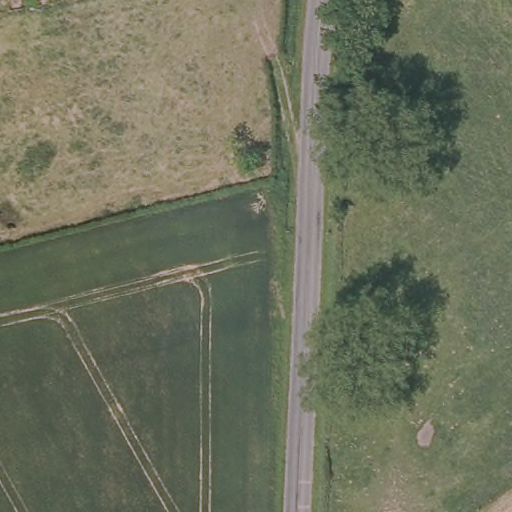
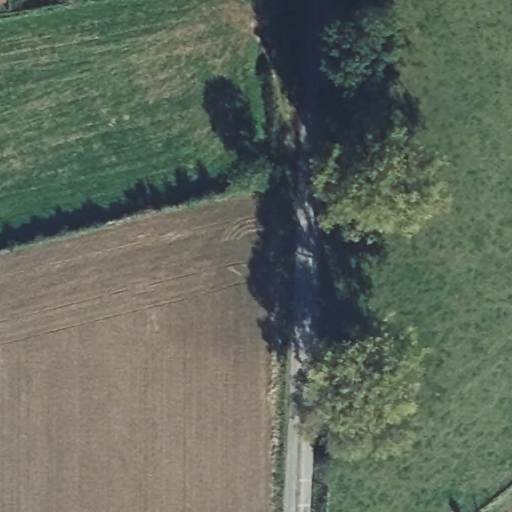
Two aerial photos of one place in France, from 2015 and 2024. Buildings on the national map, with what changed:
[]

